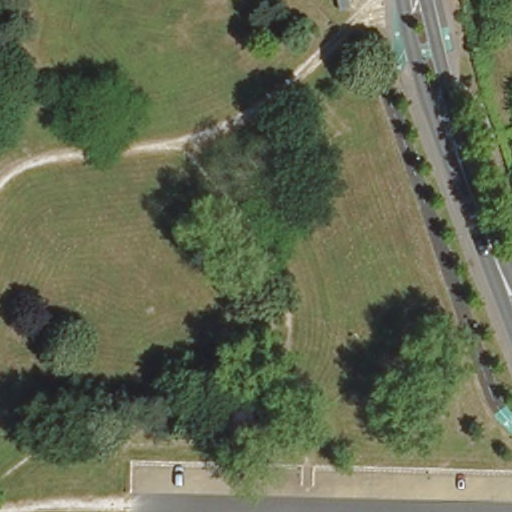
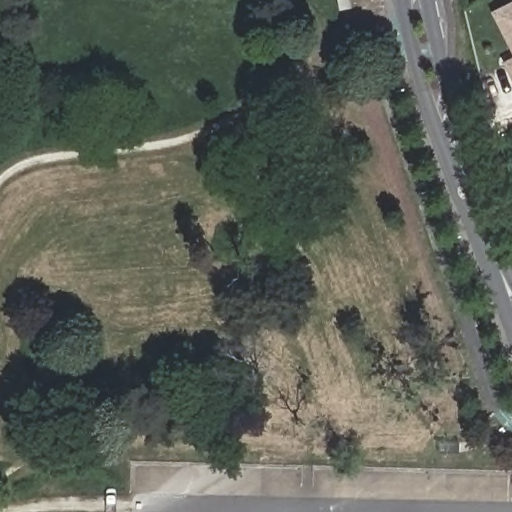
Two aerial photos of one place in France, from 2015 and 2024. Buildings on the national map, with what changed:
new [(491,11),(512,0),(512,51),(491,11)]
new [(504,62),(512,58),(512,76),(504,62)]

